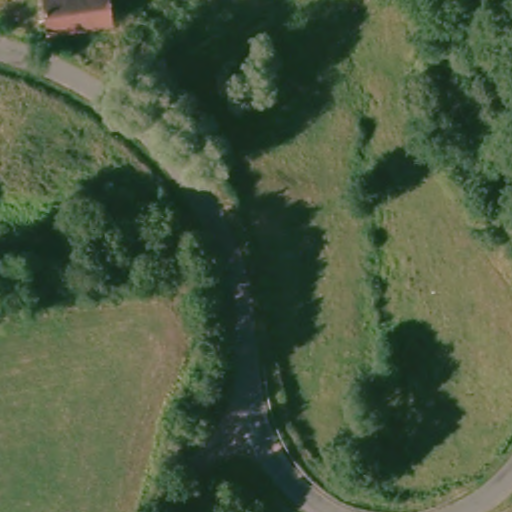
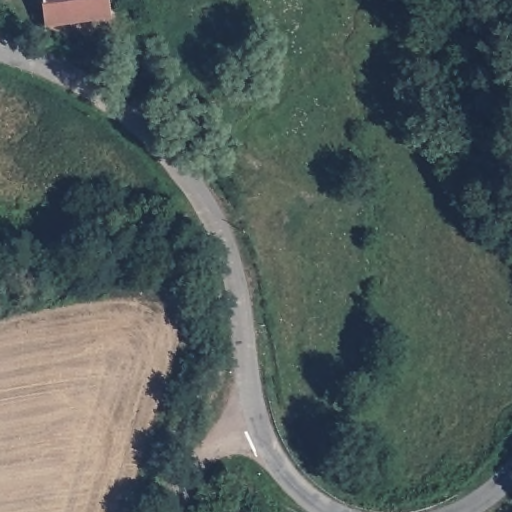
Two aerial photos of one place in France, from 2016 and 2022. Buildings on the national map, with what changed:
unchanged [(115,12),(50,25),(46,0),(113,0),(115,12)]

